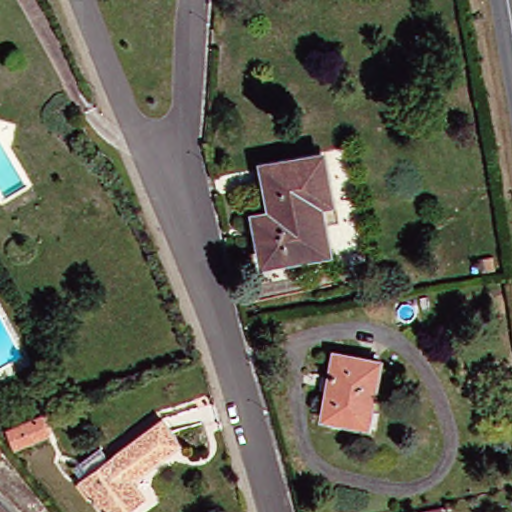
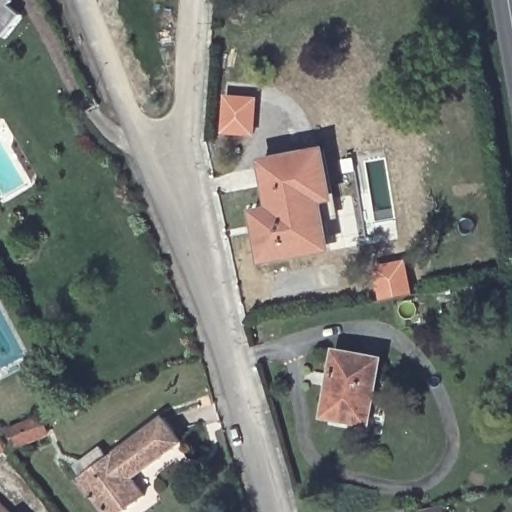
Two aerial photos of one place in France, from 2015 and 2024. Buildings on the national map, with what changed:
new [(257,136),(223,134),(225,95),(261,96),(257,136)]
unchanged [(244,215),(261,212),(253,165),(317,152),(325,202),(313,205),(321,251),(253,265),(244,215)]
new [(416,293),(383,300),(376,265),(411,259),(416,293)]
unchanged [(359,424),(313,416),(325,348),(371,357),(359,424)]
unchanged [(6,425),(36,412),(43,430),(12,442),(6,425)]
unchanged [(116,512),(104,512),(71,465),(96,447),(104,457),(160,417),(177,441),(128,477),(141,494),(116,512)]

